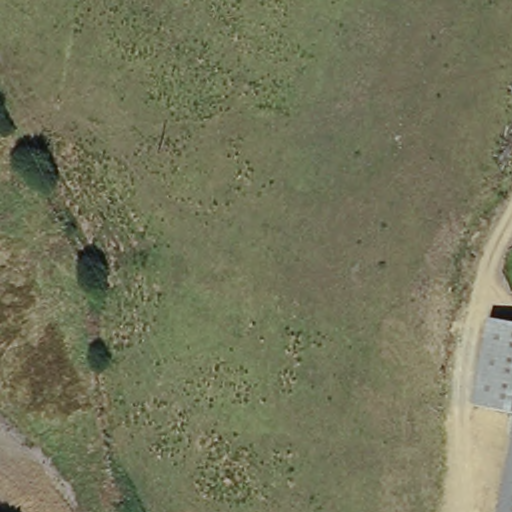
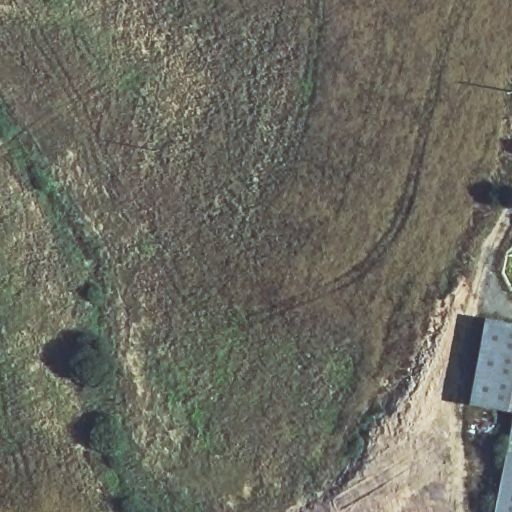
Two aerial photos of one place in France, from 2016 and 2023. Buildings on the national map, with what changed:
unchanged [(490,318),(512,322),(512,415),(475,404),(490,318)]
unchanged [(512,442),(512,512),(501,512),(512,442)]

